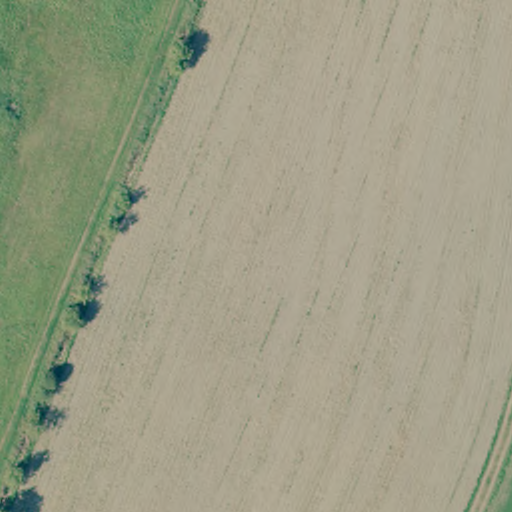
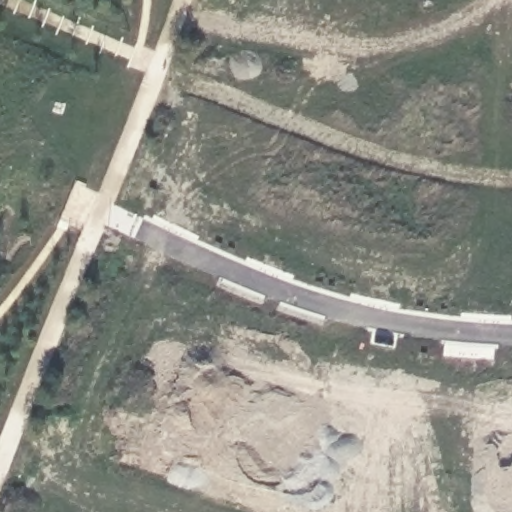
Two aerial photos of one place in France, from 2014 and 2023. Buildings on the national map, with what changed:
[]

